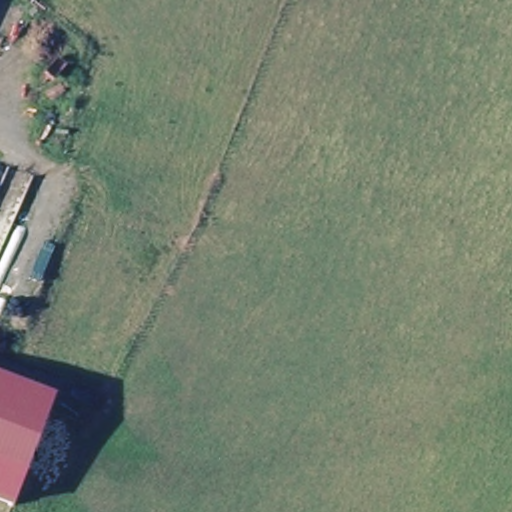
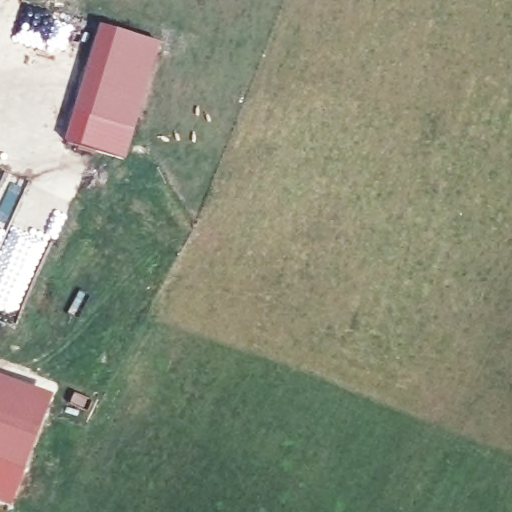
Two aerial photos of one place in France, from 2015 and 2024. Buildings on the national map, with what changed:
new [(161,44),(134,133),(73,114),(99,27),(161,44)]
unchanged [(11,509),(0,505),(0,378),(52,398),(11,509)]

